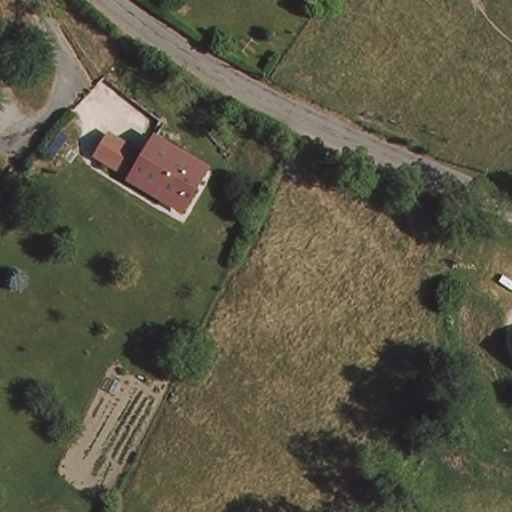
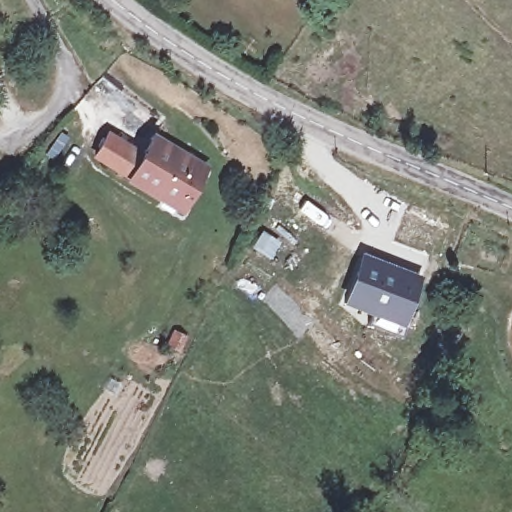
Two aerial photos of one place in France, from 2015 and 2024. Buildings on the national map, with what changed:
unchanged [(207,167),(186,211),(128,185),(93,170),(105,147),(140,163),(150,142),(207,167)]
new [(360,251),(420,274),(400,328),(341,304),(360,251)]

